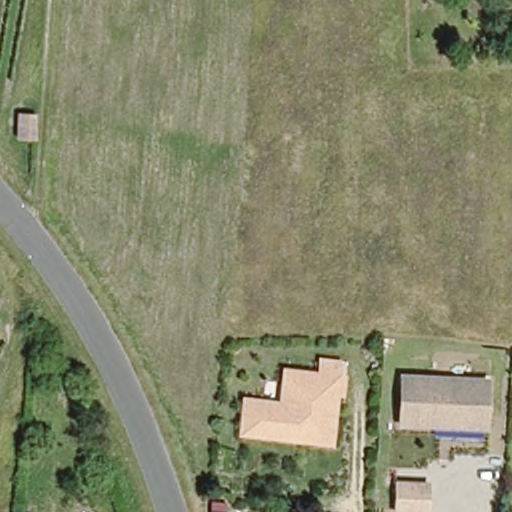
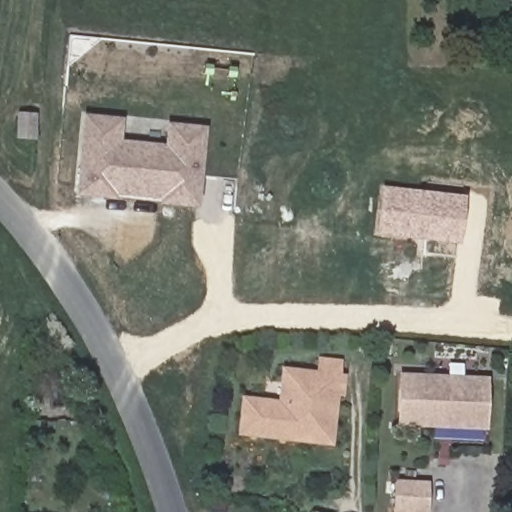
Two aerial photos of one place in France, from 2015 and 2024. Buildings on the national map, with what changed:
unchanged [(37,139),(19,137),(20,111),(39,112),(37,139)]
new [(161,202),(161,197),(112,192),(111,197),(78,194),(78,189),(86,118),(121,122),(119,144),(167,149),(169,127),(203,131),(195,201),(195,206),(161,202)]
new [(460,245),(376,234),(381,186),(466,195),(460,245)]
unchanged [(299,443),(240,437),(244,402),(284,406),(286,389),(283,389),(284,373),(318,377),(320,363),(340,365),(339,379),(343,380),(342,396),(336,395),(335,410),(331,446),(299,443)]
unchanged [(489,382),(487,429),(403,426),(405,380),(489,382)]
new [(396,479),(432,481),(430,512),(394,512),(396,479)]

